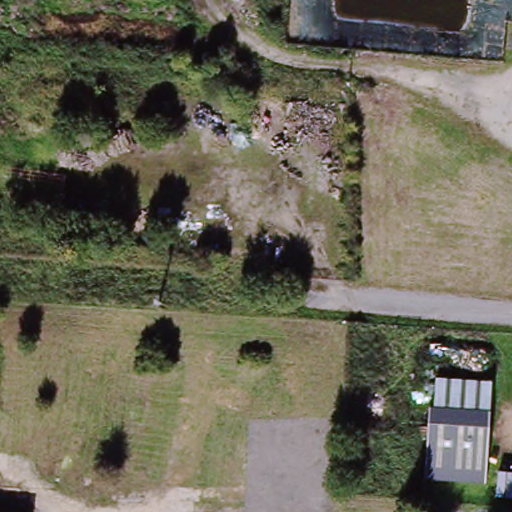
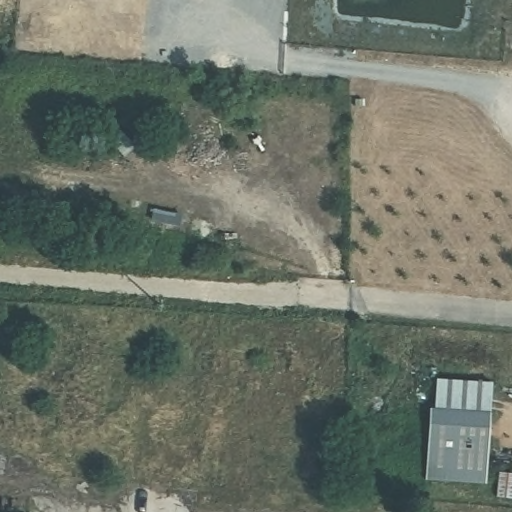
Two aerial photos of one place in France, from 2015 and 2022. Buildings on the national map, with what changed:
unchanged [(436,410),(437,380),(492,383),(486,482),(427,478),(431,410),(436,410)]
unchanged [(0,497),(34,498),(33,512),(0,512),(0,497)]

